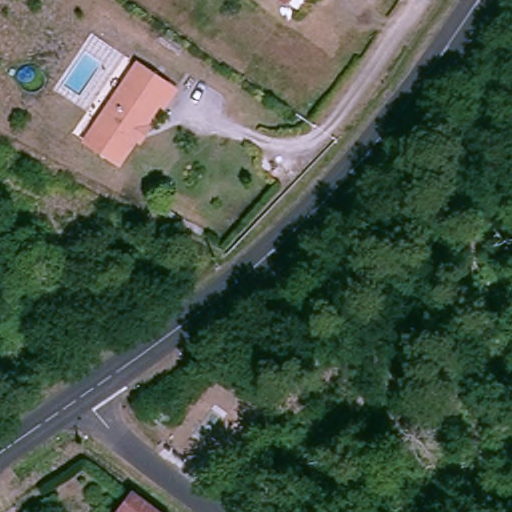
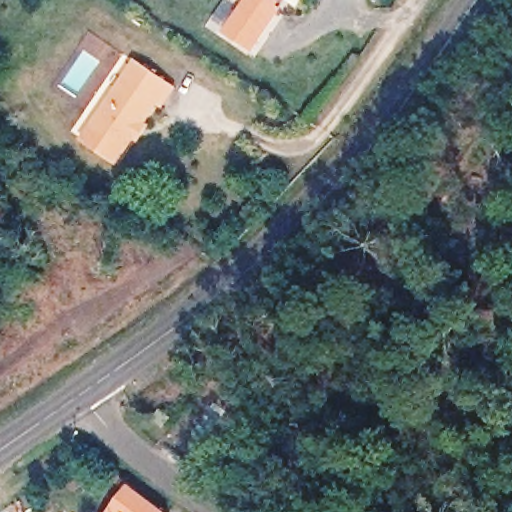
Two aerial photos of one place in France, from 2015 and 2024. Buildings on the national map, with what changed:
new [(246,0),(289,0),(283,9),(253,53),(224,32),(246,0)]
demolished [(284,0),(291,0),(289,3),(284,0)]
unchanged [(133,136),(128,133),(111,159),(78,137),(129,60),(167,86),(156,102),(151,99),(137,120),(141,123),(133,136)]
unchanged [(160,410),(172,419),(163,431),(151,422),(160,410)]
unchanged [(123,487),(156,512),(114,512),(108,507),(123,487)]
unchanged [(108,507),(114,512),(104,512),(108,507)]

